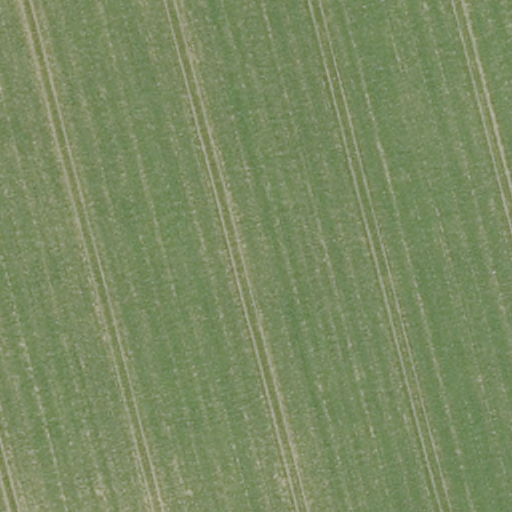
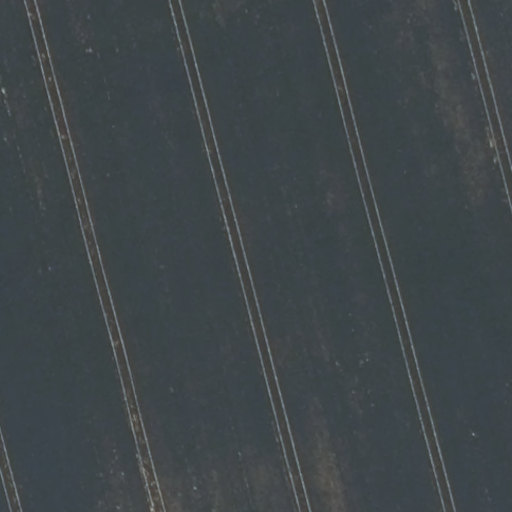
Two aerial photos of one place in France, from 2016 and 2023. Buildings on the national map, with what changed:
[]

